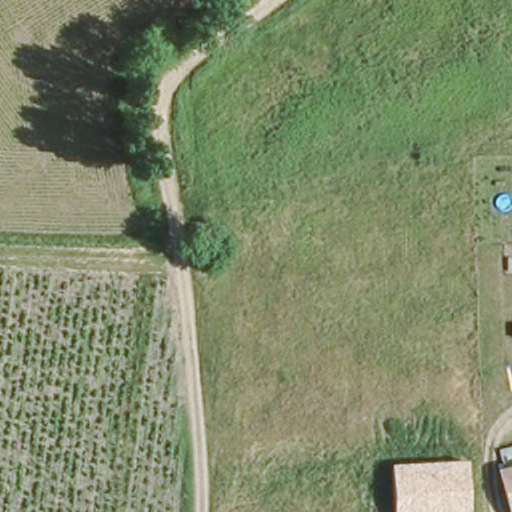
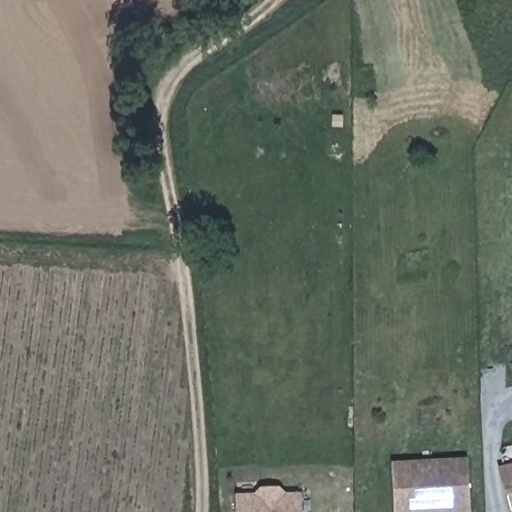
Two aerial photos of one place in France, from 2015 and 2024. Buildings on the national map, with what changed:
unchanged [(471,512),(394,512),(391,464),(468,461),(471,512)]
demolished [(512,465),(512,512),(508,512),(496,470),(512,465)]
new [(512,501),(502,468),(512,465),(512,501)]
new [(264,490),(279,490),(285,496),(303,495),(304,512),(238,512),(237,498),(258,497),(264,490)]

